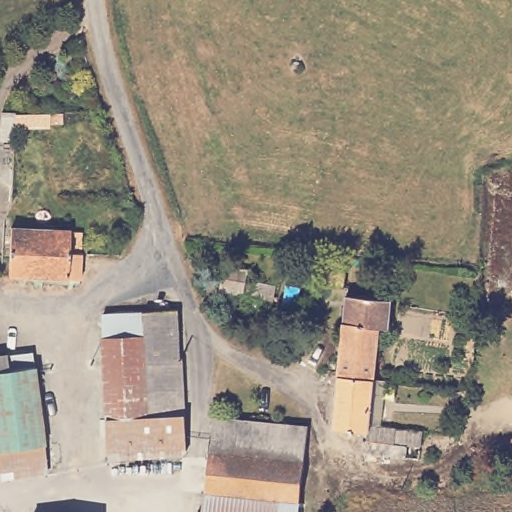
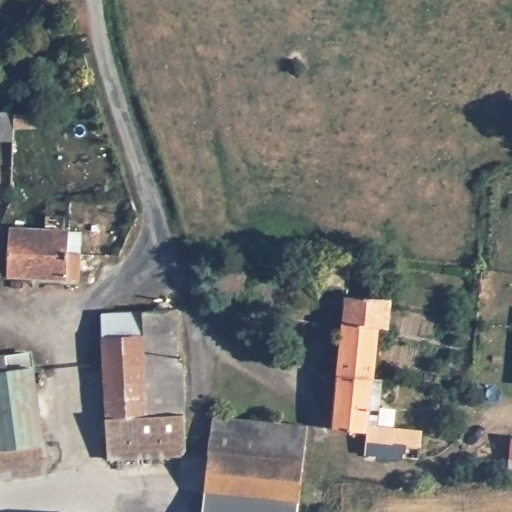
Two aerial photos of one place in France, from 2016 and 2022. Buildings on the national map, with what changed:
unchanged [(71,225),(70,249),(82,249),(81,275),(8,272),(11,224),(71,225)]
unchanged [(249,277),(247,285),(276,291),(275,307),(220,297),(225,272),(249,277)]
unchanged [(331,425),(345,290),(398,293),(396,332),(382,333),(373,431),(331,425)]
unchanged [(105,310),(145,310),(146,413),(107,415),(105,310)]
unchanged [(111,460),(107,415),(146,413),(145,310),(179,310),(180,357),(184,361),(185,401),(185,412),(187,451),(111,460)]
unchanged [(11,352),(13,366),(36,363),(51,467),(0,475),(0,353),(11,352)]
unchanged [(206,496),(214,422),(308,431),(305,468),(300,512),(204,512),(206,496)]
unchanged [(512,438),(512,466),(510,465),(512,438)]
unchanged [(90,510),(90,512),(44,512),(90,510)]

